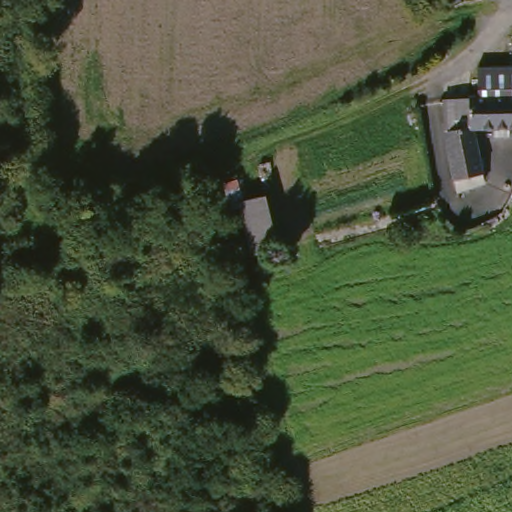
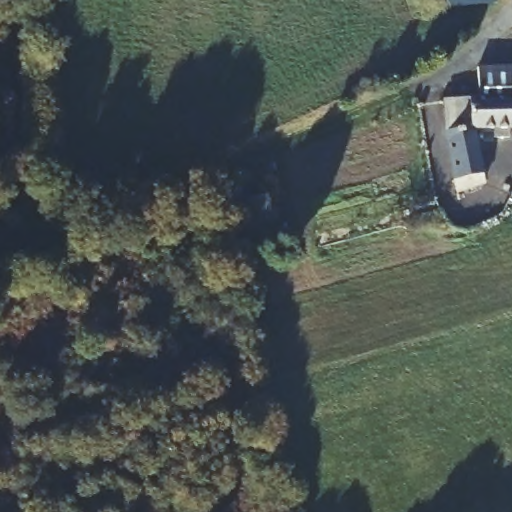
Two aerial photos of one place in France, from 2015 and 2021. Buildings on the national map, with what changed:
unchanged [(477,65),(512,58),(512,87),(482,93),(477,65)]
unchanged [(464,184),(453,129),(449,99),(474,95),(482,93),(512,87),(512,119),(509,120),(512,134),(493,136),(491,122),(478,124),(487,179),(464,184)]
unchanged [(247,178),(272,171),(286,221),(260,227),(247,178)]

